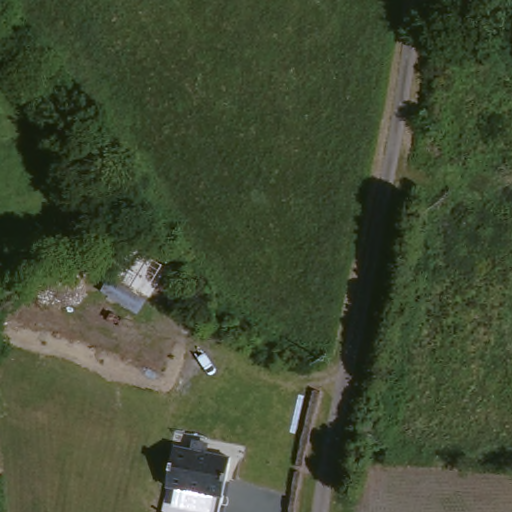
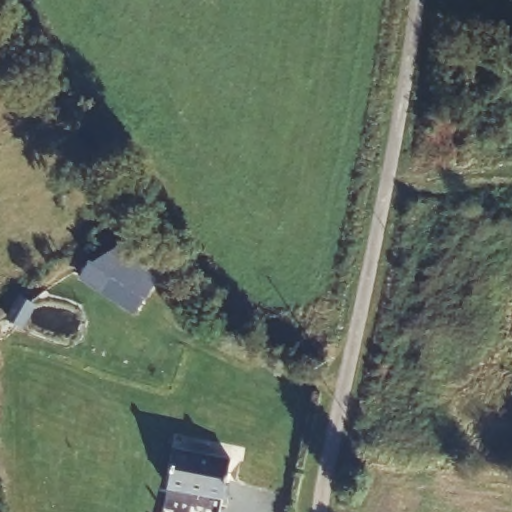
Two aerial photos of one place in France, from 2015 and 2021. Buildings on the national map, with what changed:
new [(83,278),(94,262),(127,239),(167,263),(146,297),(136,313),(83,278)]
unchanged [(179,446),(194,448),(197,441),(211,444),(211,452),(236,457),(227,497),(171,485),(179,446)]

